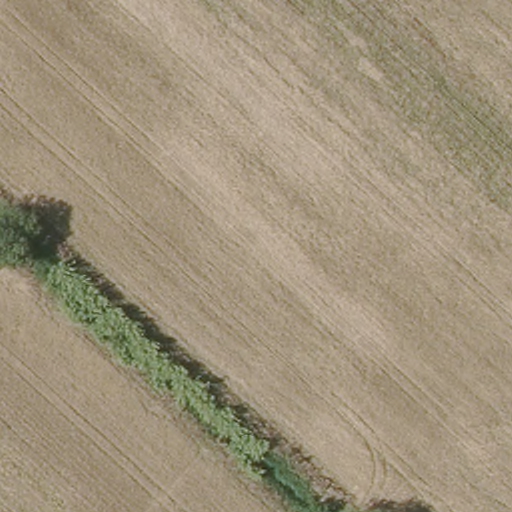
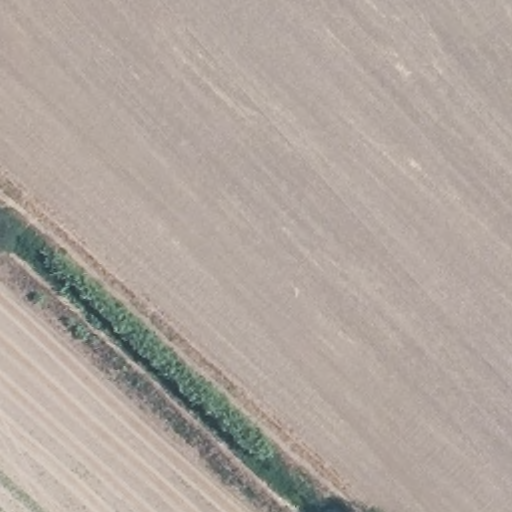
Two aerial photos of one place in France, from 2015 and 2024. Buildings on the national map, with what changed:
[]

